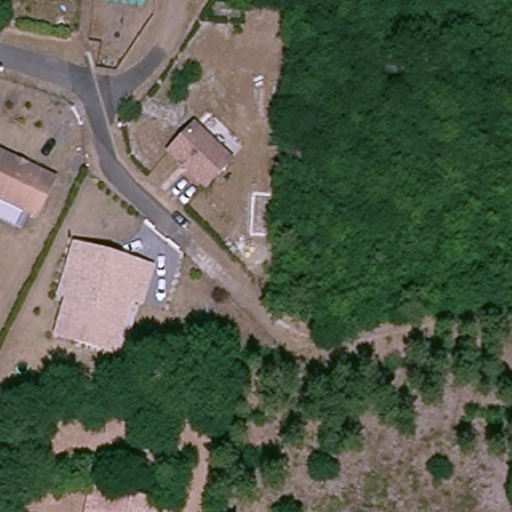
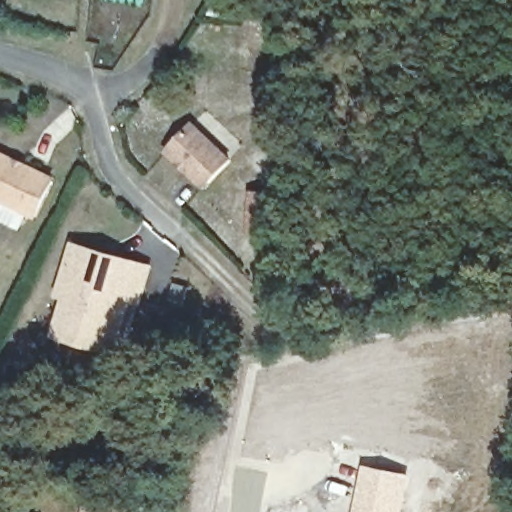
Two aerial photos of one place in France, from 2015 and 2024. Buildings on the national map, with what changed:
unchanged [(198,128),(234,164),(208,190),(172,155),(198,128)]
unchanged [(38,220),(0,202),(0,154),(56,181),(38,220)]
unchanged [(65,298),(76,259),(80,248),(135,265),(155,270),(145,305),(134,302),(119,355),(78,342),(60,338),(72,300),(65,298)]
new [(410,473),(401,512),(353,512),(363,463),(410,473)]
unchanged [(145,500),(165,503),(163,512),(88,512),(93,488),(145,500)]

